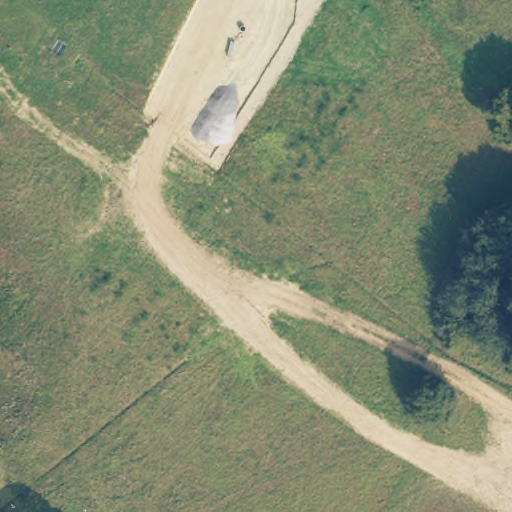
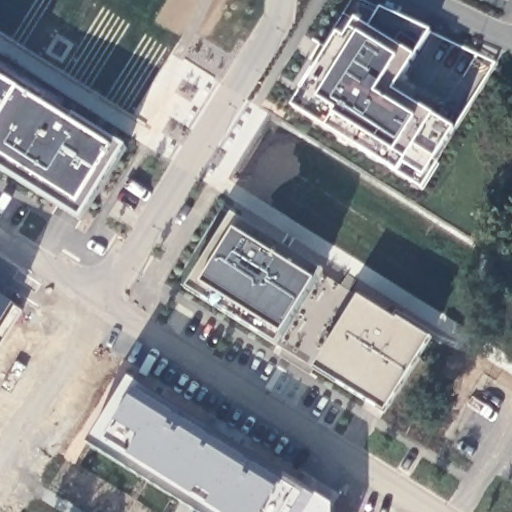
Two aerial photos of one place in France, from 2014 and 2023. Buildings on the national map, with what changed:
new [(339,34),(345,38),(357,21),(371,30),(385,9),(436,35),(419,61),(407,80),(419,90),(412,102),(433,115),(455,129),(425,176),(405,164),(398,172),(294,106),(339,34)]
new [(45,97),(40,103),(72,123),(74,116),(124,146),(79,218),(0,169),(0,70),(45,97)]
new [(276,344),(187,287),(231,215),(358,299),(428,338),(383,410),(316,368),(276,344)]
new [(195,512),(172,498),(160,490),(99,452),(87,445),(129,378),(141,385),(321,498),(334,507),(334,512),(195,512)]

